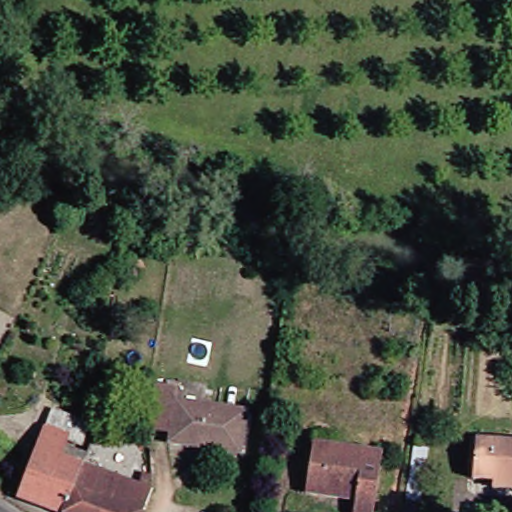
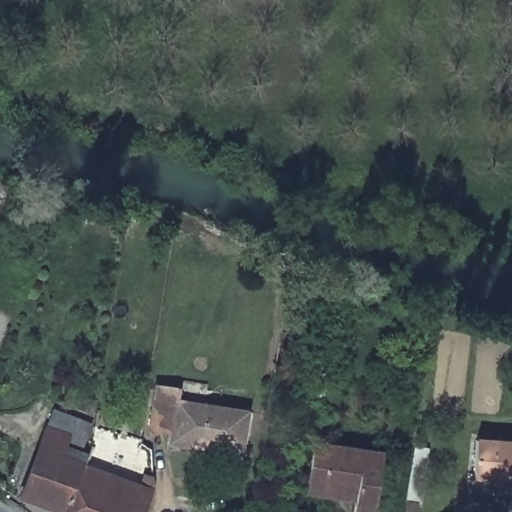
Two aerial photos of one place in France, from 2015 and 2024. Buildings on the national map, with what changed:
unchanged [(178,392),(177,402),(247,413),(240,456),(171,445),(172,434),(148,431),(155,389),(158,389),(163,390),(174,392),(178,392)]
unchanged [(70,512),(60,512),(26,498),(59,411),(99,427),(97,443),(89,463),(70,512)]
unchanged [(473,480),(478,441),(512,444),(512,491),(494,489),(495,482),(473,480)]
unchanged [(318,445),(387,455),(379,512),(360,512),(361,501),(342,499),(310,494),(311,486),(318,445)]
unchanged [(150,512),(70,512),(89,463),(145,487),(150,475),(158,478),(159,488),(150,512)]

